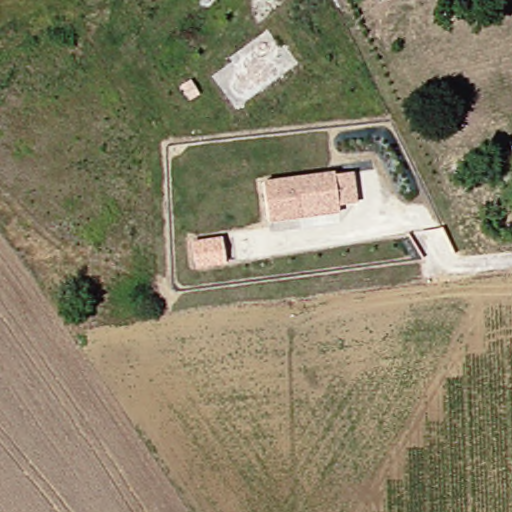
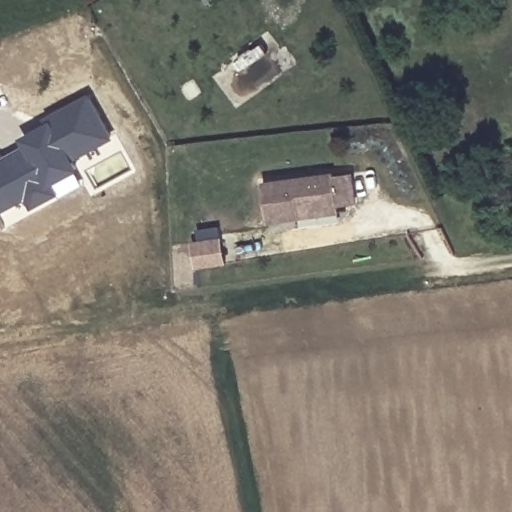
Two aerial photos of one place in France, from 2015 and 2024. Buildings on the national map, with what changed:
new [(73,158),(79,170),(73,173),(80,185),(28,211),(23,200),(0,212),(0,159),(23,147),(18,137),(45,123),(43,118),(87,94),(112,137),(73,158)]
unchanged [(335,213),(303,217),(270,222),(264,182),(328,173),(337,172),(337,175),(354,172),(358,203),(341,205),(342,207),(342,212),(335,213)]
unchanged [(222,237),(225,261),(195,265),(192,241),(222,237)]

